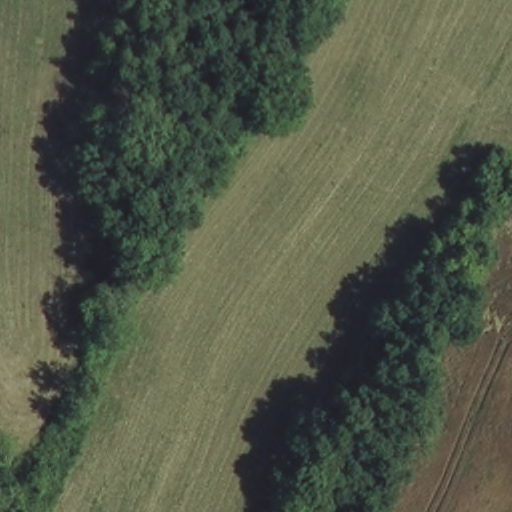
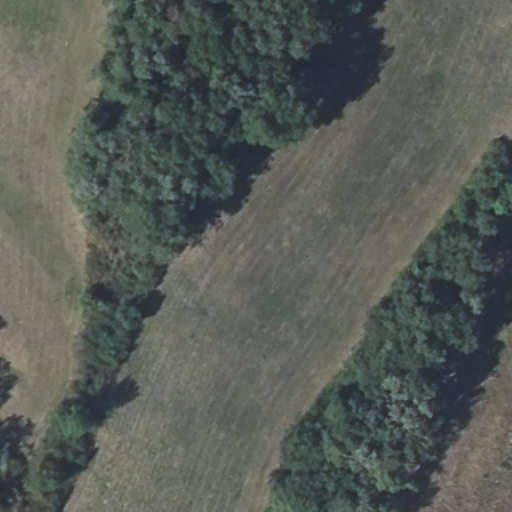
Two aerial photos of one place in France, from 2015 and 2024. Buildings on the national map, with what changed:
[]

